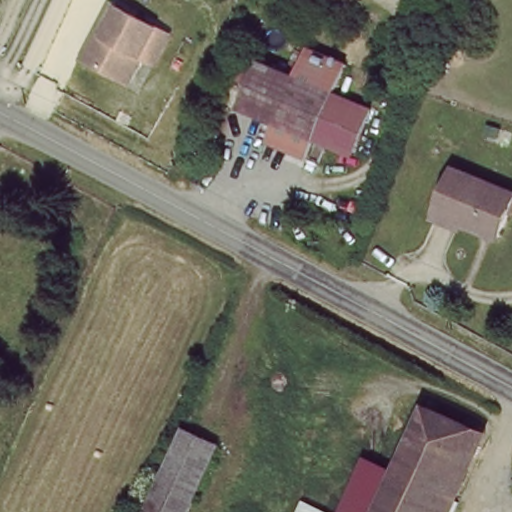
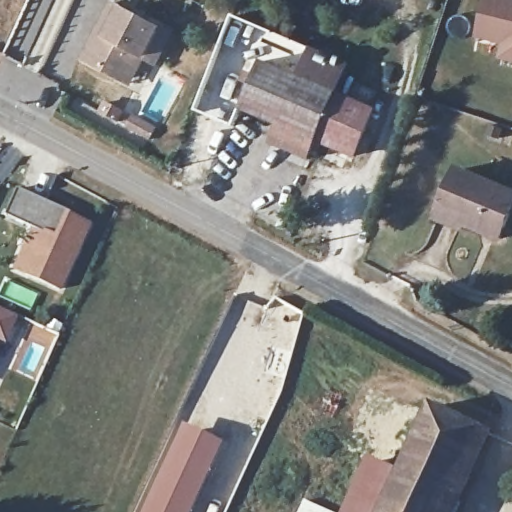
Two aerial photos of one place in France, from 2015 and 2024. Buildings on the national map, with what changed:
new [(476,38),(485,0),(512,0),(512,63),(498,60),(502,44),(476,38)]
unchanged [(174,35),(153,76),(145,74),(135,90),(79,60),(94,30),(103,36),(118,7),(174,35)]
unchanged [(344,95),(322,142),(250,112),(270,62),(344,95)]
unchanged [(383,111),(362,158),(322,142),(344,95),(383,111)]
unchanged [(447,203),(461,169),(512,189),(512,225),(507,235),(473,222),(470,228),(442,217),(447,203)]
new [(6,215),(19,189),(68,212),(94,222),(62,292),(15,270),(35,228),(6,215)]
new [(13,310),(2,335),(0,334),(0,304),(13,310)]
unchanged [(448,405),(499,430),(460,512),(399,512),(448,405)]
unchanged [(222,443),(189,512),(154,512),(192,430),(222,443)]

